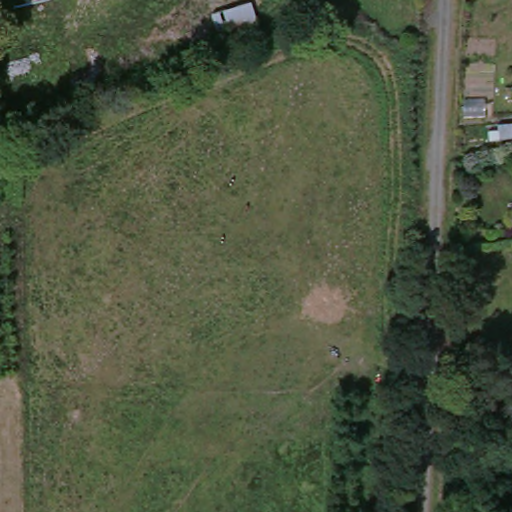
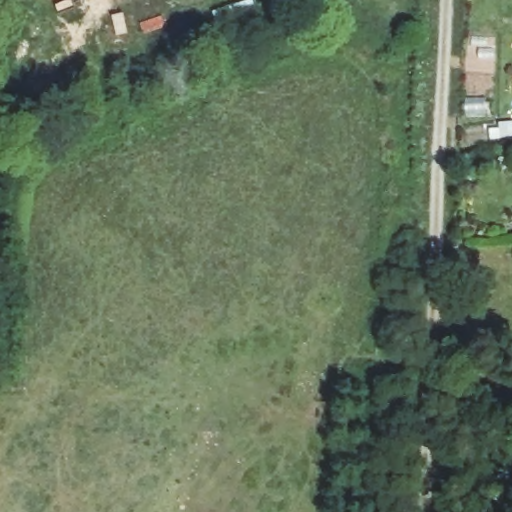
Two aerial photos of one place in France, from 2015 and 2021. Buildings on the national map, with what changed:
unchanged [(442,363),(445,351),(463,354),(461,366),(442,363)]

